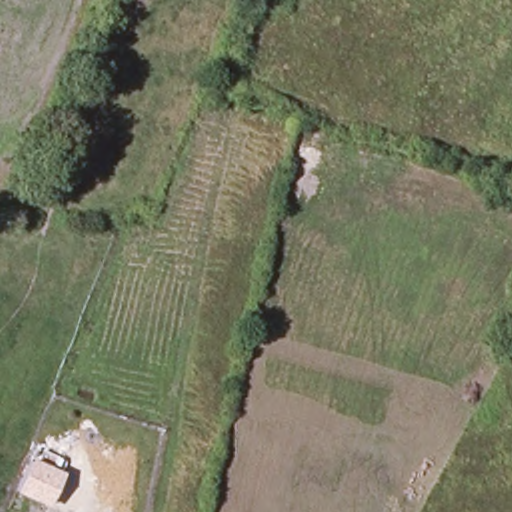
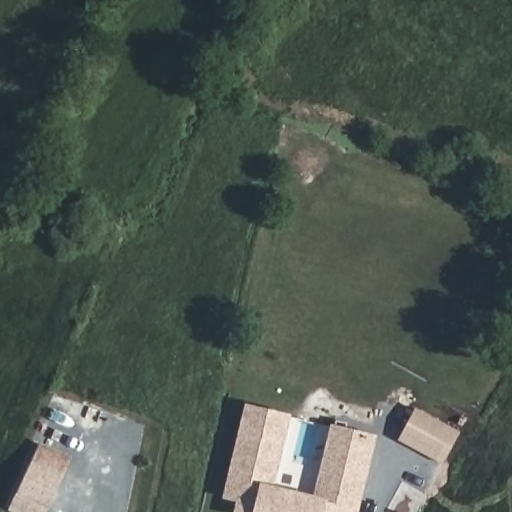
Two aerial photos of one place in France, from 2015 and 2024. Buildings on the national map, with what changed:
new [(223,499),(245,405),(292,415),(274,487),(313,496),(330,424),(376,435),(359,512),(233,512),(236,501),(223,499)]
new [(460,433),(443,465),(399,441),(416,409),(460,433)]
unchanged [(49,508),(17,494),(31,460),(62,474),(49,508)]

